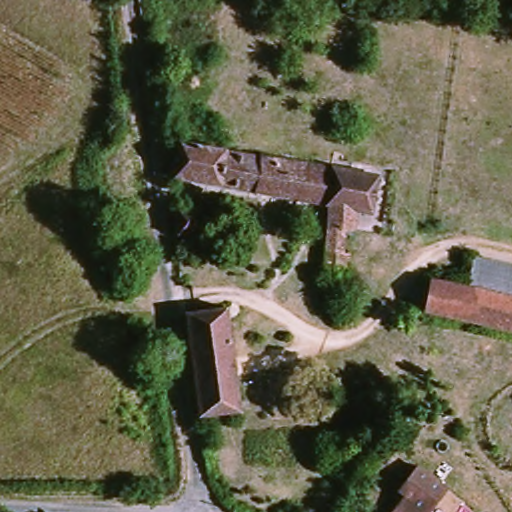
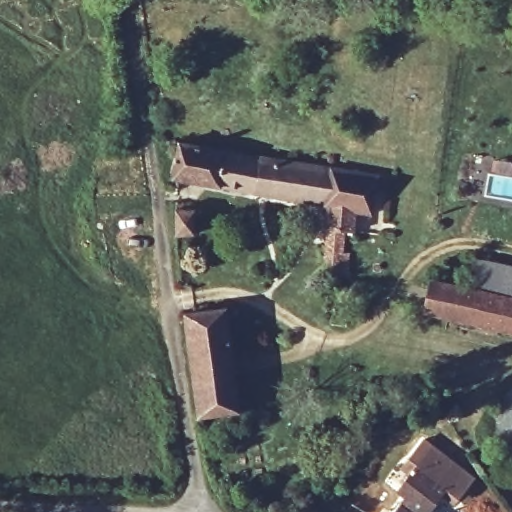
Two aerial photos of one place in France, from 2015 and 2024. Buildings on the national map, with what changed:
unchanged [(397,193),(395,207),(382,203),(376,216),(355,210),(350,230),(345,229),(337,275),(324,274),(332,208),(174,173),(184,138),(350,175),(349,182),(397,193)]
unchanged [(480,260),(512,268),(512,297),(475,287),(480,260)]
unchanged [(438,280),(475,287),(512,297),(512,333),(431,310),(438,280)]
unchanged [(242,412),(201,419),(185,313),(228,307),(242,412)]
new [(441,487),(418,470),(412,477),(399,468),(423,435),(476,475),(453,508),(435,495),(441,487)]
unchanged [(405,492),(403,489),(418,470),(441,487),(422,512),(390,512),(393,509),(405,492)]

